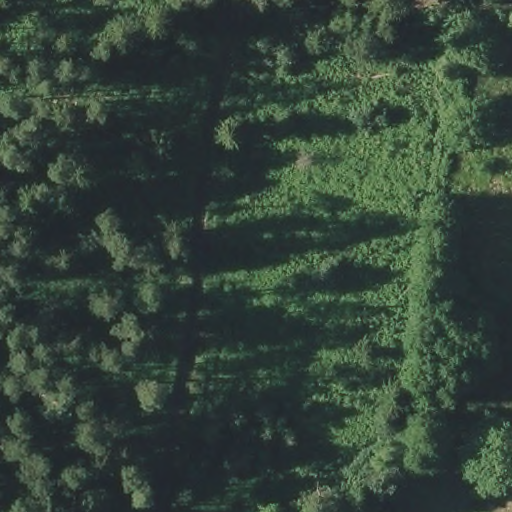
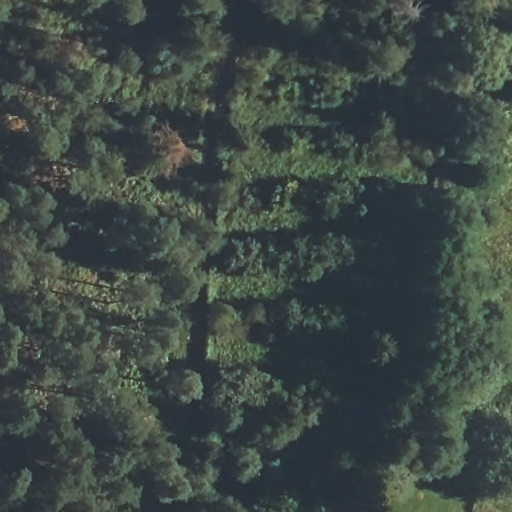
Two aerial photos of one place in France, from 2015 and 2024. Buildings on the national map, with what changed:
[]

